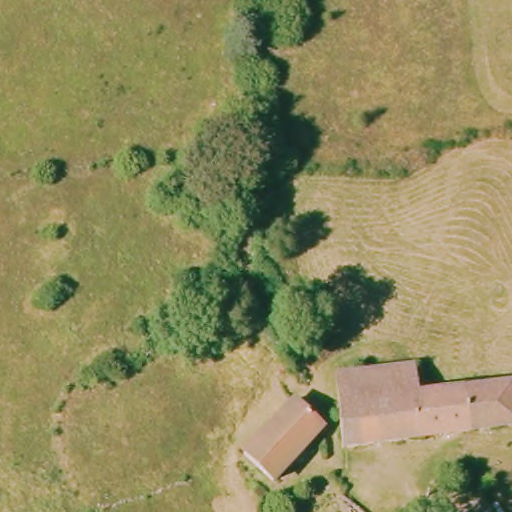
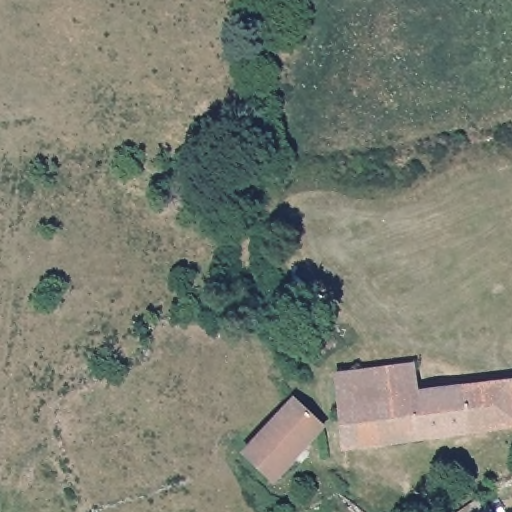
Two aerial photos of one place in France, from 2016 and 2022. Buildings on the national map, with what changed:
unchanged [(343,381),(422,372),(426,404),(512,395),(512,435),(353,450),(343,381)]
unchanged [(307,406),(326,431),(275,483),(252,456),(306,406),(307,406)]
unchanged [(483,512),(465,512),(478,504),(483,512)]

